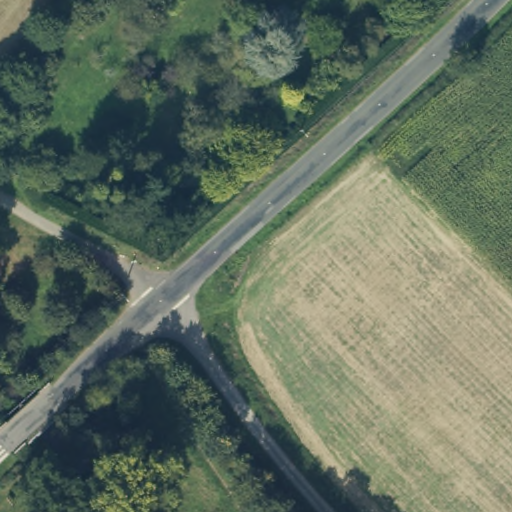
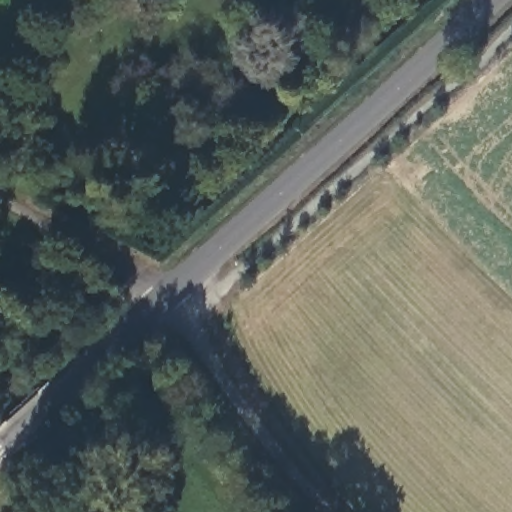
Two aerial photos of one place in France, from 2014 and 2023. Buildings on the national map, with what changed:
[]

